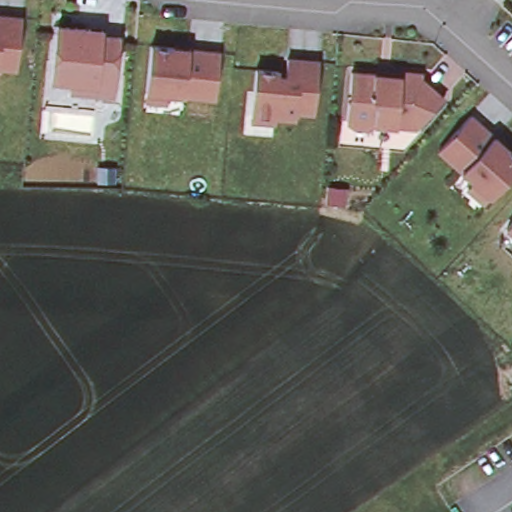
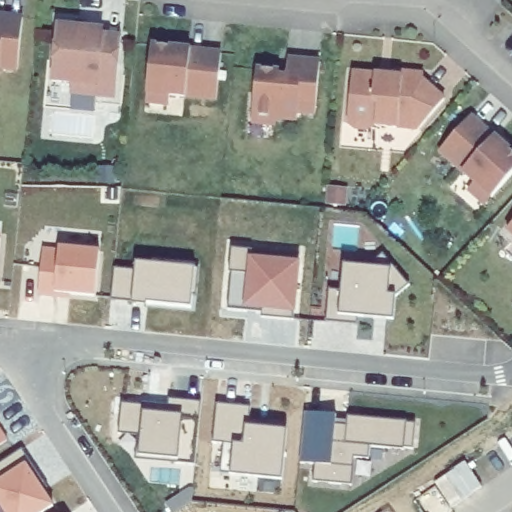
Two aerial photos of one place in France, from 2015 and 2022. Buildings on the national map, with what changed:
unchanged [(25,16),(19,68),(1,66),(1,74),(0,73),(0,13),(25,16)]
unchanged [(74,85),(54,84),(59,29),(93,32),(105,34),(105,39),(123,40),(118,100),(98,98),(73,95),(74,85)]
unchanged [(147,104),(148,94),(153,48),(176,50),(191,52),(223,55),(218,102),(171,97),(170,107),(147,104)]
unchanged [(253,120),(253,114),(258,67),(281,69),(280,74),(288,74),(290,56),(322,59),(316,111),(299,110),(298,118),(276,115),(276,122),(253,120)]
unchanged [(424,78),(446,97),(420,126),(377,122),(368,126),(357,125),(349,119),(351,100),(357,95),(352,89),(353,70),(377,73),(382,68),(391,69),(425,71),(424,78)]
unchanged [(476,184),(441,153),(472,118),(512,154),(512,178),(493,199),(487,207),(470,192),(476,184)]
new [(2,243),(0,267),(0,242),(2,243)]
new [(72,302),(57,300),(40,299),(45,252),(61,254),(61,251),(102,255),(97,300),(58,296),(72,298),(72,302)]
new [(233,277),(231,277),(233,252),(301,258),(295,324),(263,321),(264,312),(249,311),(248,315),(229,314),(233,277)]
new [(373,264),(382,254),(408,284),(394,294),(393,317),(357,314),(356,323),(326,320),(328,287),(340,288),(343,261),(373,264)]
new [(194,299),(193,311),(113,304),(116,272),(137,273),(137,265),(153,267),(206,272),(203,299),(194,299)]
new [(149,307),(149,309),(133,308),(134,305),(149,307)]
new [(264,312),(263,317),(248,315),(249,311),(264,312)]
new [(197,469),(177,467),(178,464),(140,460),(142,438),(122,436),(122,438),(120,438),(123,406),(145,409),(144,418),(169,420),(171,403),(203,406),(197,469)]
new [(169,420),(144,418),(145,406),(170,409),(169,420)]
new [(269,423),(289,425),(283,483),(222,477),(225,447),(215,446),(219,407),(253,410),(251,430),(268,432),(269,424),(269,423)]
new [(338,419),(337,428),(348,429),(349,420),(409,426),(409,427),(418,428),(415,453),(406,452),(406,454),(372,451),(371,463),(356,462),(353,489),(315,486),(316,468),(301,467),(306,416),(338,419)]
new [(269,424),(268,432),(251,430),(251,423),(269,424)]
new [(349,424),(348,429),(337,428),(338,423),(349,424)]
new [(9,444),(0,450),(0,431),(9,444)]
new [(45,484),(40,488),(55,509),(51,512),(4,512),(0,506),(0,468),(24,453),(45,484)]

